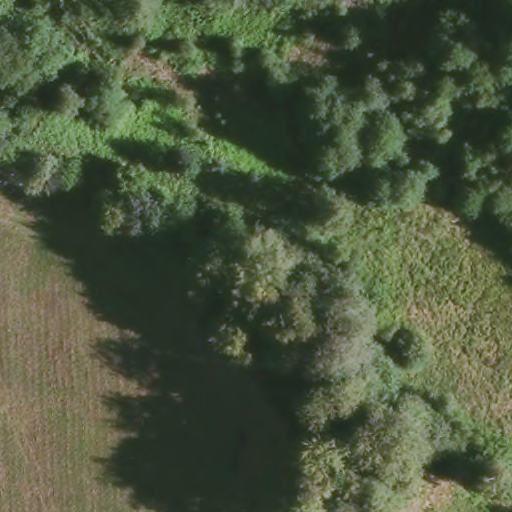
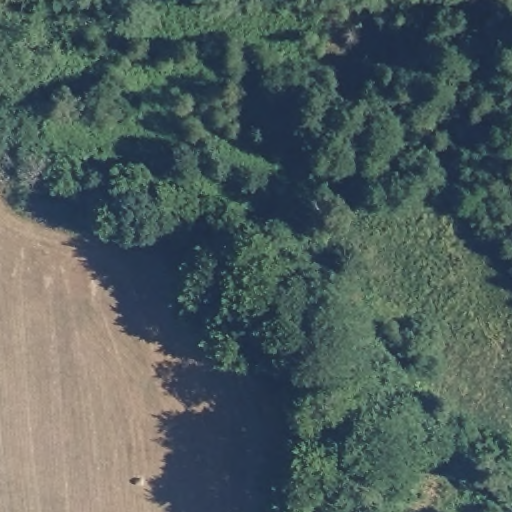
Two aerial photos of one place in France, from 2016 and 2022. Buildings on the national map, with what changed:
[]

